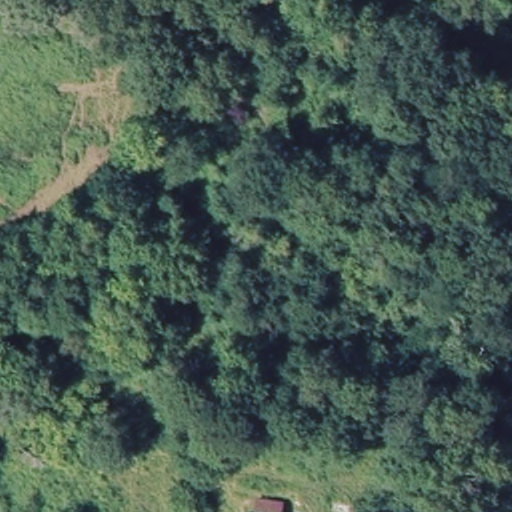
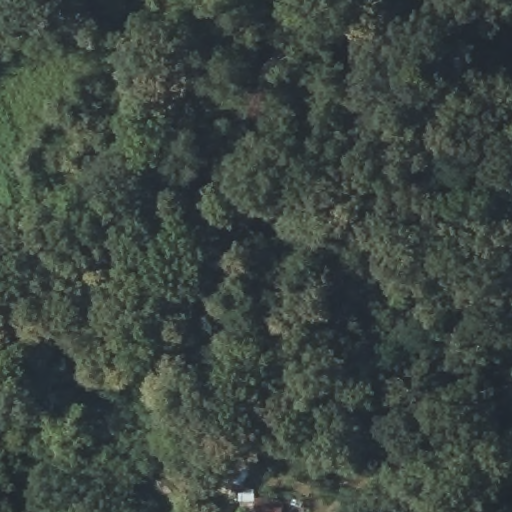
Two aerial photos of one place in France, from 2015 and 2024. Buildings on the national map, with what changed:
unchanged [(247,490),(288,493),(288,512),(247,512),(247,490)]
unchanged [(182,509),(182,512),(130,512),(131,506),(182,509)]

